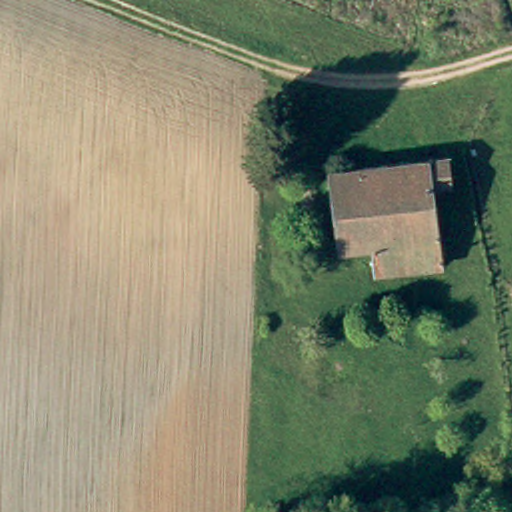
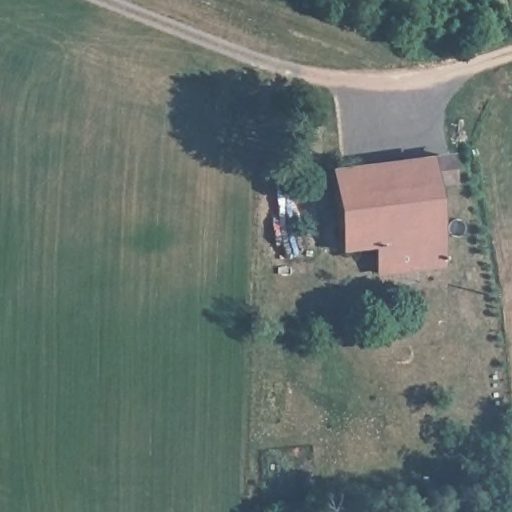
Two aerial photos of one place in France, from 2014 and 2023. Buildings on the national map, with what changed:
unchanged [(379,277),(378,252),(340,253),(337,178),(452,170),(454,196),(437,198),(443,273),(379,277)]

